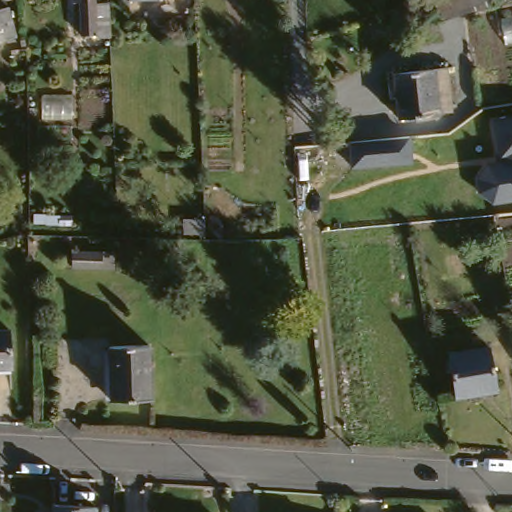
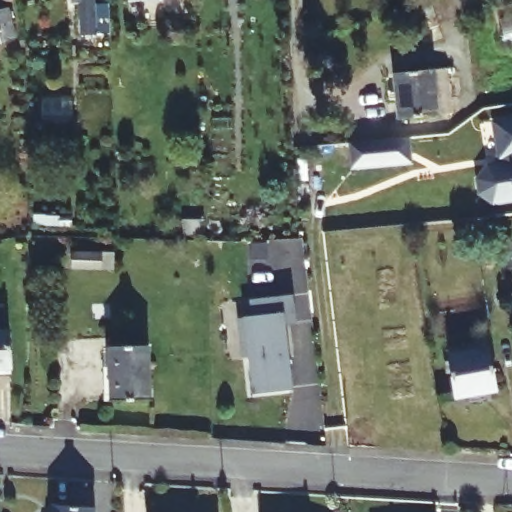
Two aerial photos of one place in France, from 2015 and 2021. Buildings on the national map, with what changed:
unchanged [(109,34),(97,35),(97,36),(81,36),(79,3),(72,3),(72,0),(95,0),(96,5),(108,4),(109,34)]
unchanged [(439,21),(432,0),(493,0),(494,3),(439,21)]
unchanged [(332,26),(328,15),(367,1),(371,13),(332,26)]
unchanged [(0,10),(9,8),(16,38),(1,42),(1,44),(0,44),(0,10)]
unchanged [(383,73),(424,69),(438,67),(443,111),(429,113),(389,118),(383,73)]
unchanged [(512,117),(512,203),(491,206),(475,194),(473,178),(481,165),(494,162),(489,120),(512,117)]
unchanged [(411,164),(347,170),(346,145),(408,138),(411,164)]
unchanged [(184,221),(205,220),(206,234),(184,235),(184,221)]
unchanged [(71,270),(72,251),(103,252),(115,253),(114,271),(71,270)]
new [(254,319),(252,302),(294,297),(296,315),(285,317),(293,389),(254,394),(250,357),(244,357),(240,320),(254,319)]
unchanged [(11,368),(0,369),(0,330),(9,330),(11,368)]
unchanged [(497,391),(456,398),(449,353),(489,346),(497,391)]
unchanged [(109,348),(149,347),(150,400),(110,402),(109,348)]
unchanged [(95,512),(52,512),(53,506),(95,509),(95,512)]

